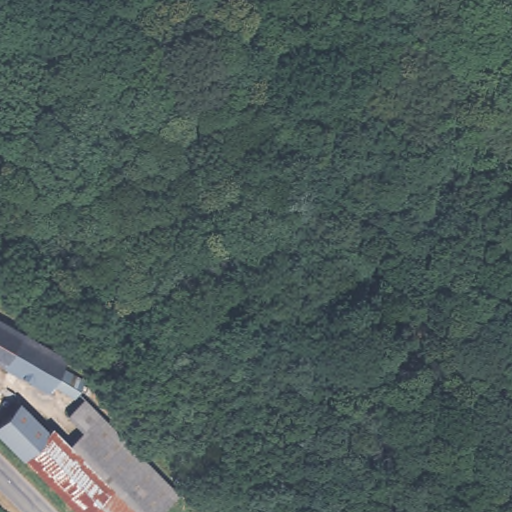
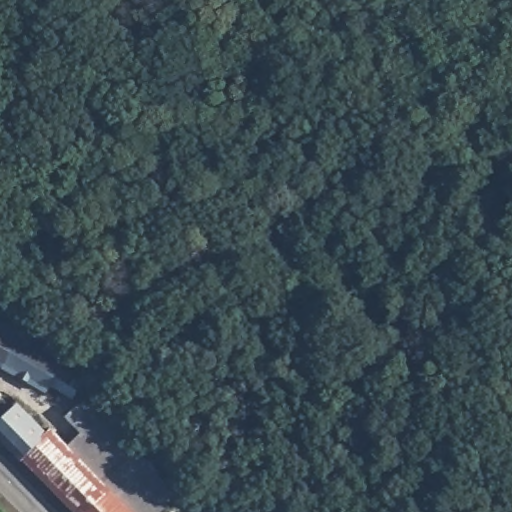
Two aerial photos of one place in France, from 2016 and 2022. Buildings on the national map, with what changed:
unchanged [(76,388),(76,390),(69,400),(46,388),(41,395),(0,372),(0,328),(36,349),(60,360),(54,373),(76,388)]
unchanged [(41,434),(46,429),(66,448),(79,434),(64,417),(81,401),(175,499),(161,512),(69,512),(0,441),(0,421),(14,408),(41,434)]

